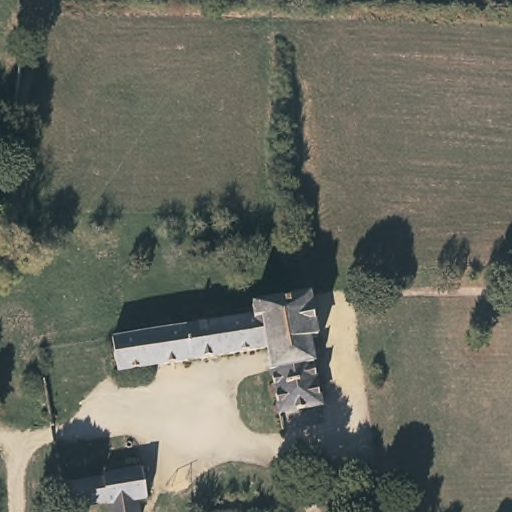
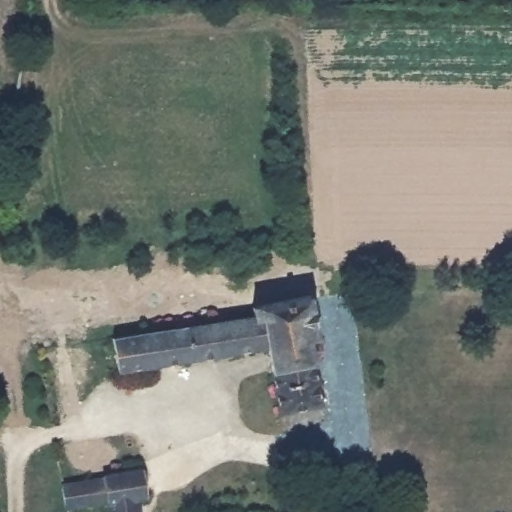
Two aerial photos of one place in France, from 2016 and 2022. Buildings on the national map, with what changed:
unchanged [(315,342),(307,344),(318,410),(278,417),(266,352),(117,378),(112,340),(247,318),(256,307),(307,299),(315,342)]
unchanged [(147,502),(74,512),(66,512),(62,488),(103,482),(102,477),(142,471),(147,502)]

